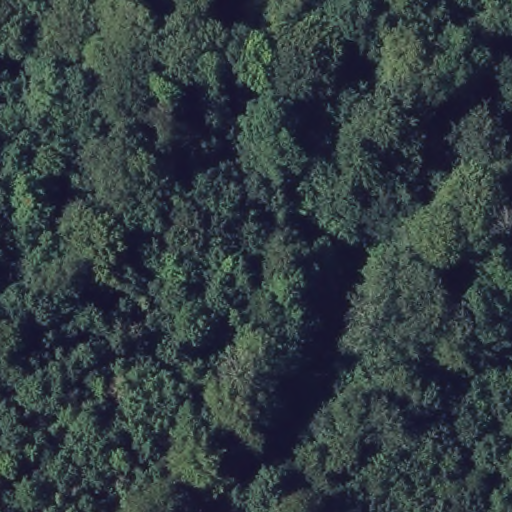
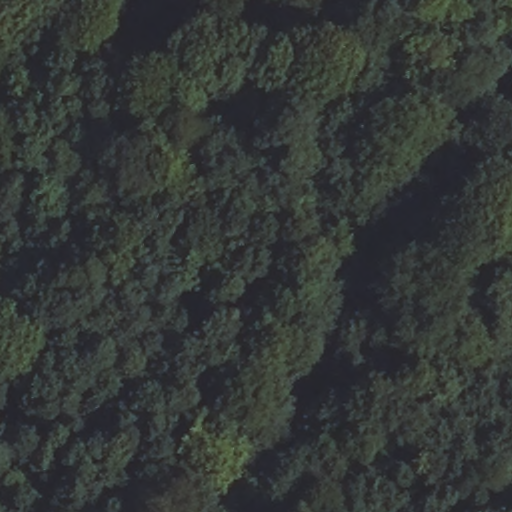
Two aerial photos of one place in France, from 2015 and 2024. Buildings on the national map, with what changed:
[]

